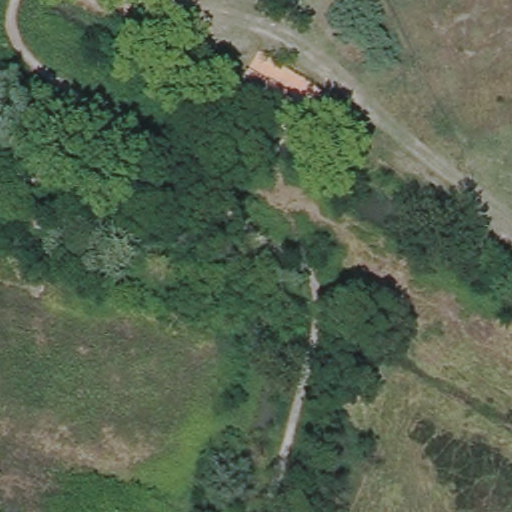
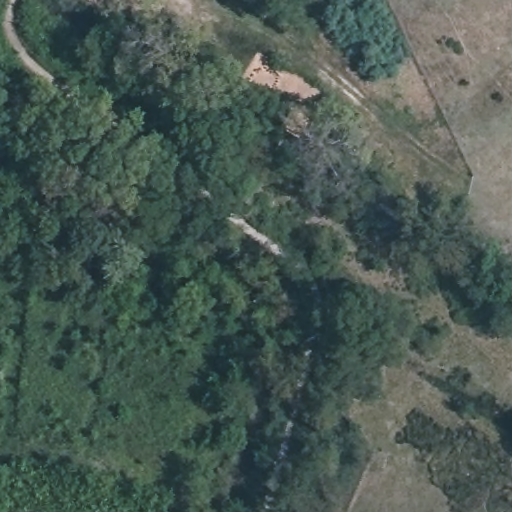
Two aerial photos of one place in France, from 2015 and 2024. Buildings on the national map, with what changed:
unchanged [(299,72),(320,85),(305,115),(287,106),(283,111),(239,86),(260,50),(299,72)]

